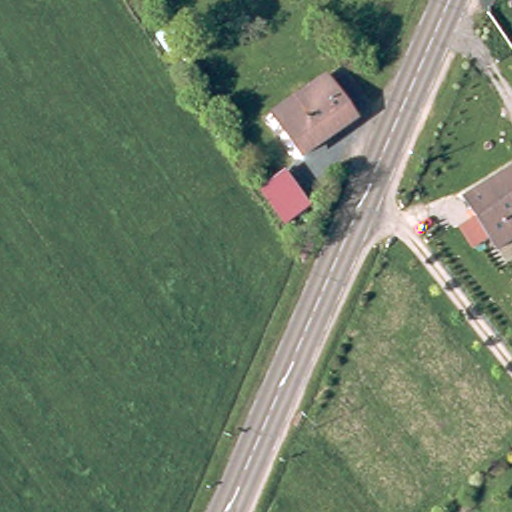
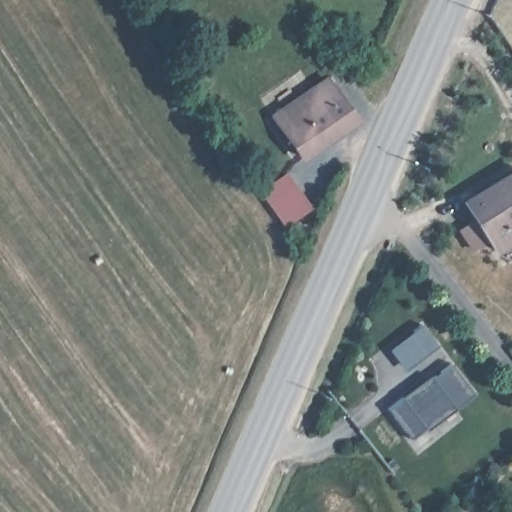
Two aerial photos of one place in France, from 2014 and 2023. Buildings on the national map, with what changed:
unchanged [(332,77),(361,117),(307,156),(278,114),(332,77)]
unchanged [(285,170),(311,208),(284,225),(259,188),(285,170)]
unchanged [(502,255),(471,205),(512,180),(512,248),(502,255)]
new [(421,323),(438,345),(405,371),(389,349),(421,323)]
new [(475,390),(412,440),(387,408),(450,360),(475,390)]

